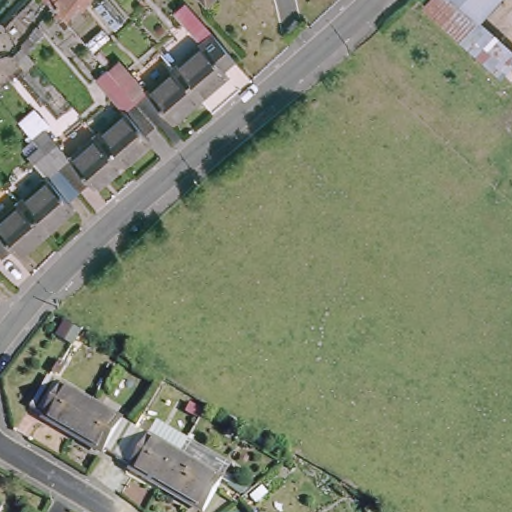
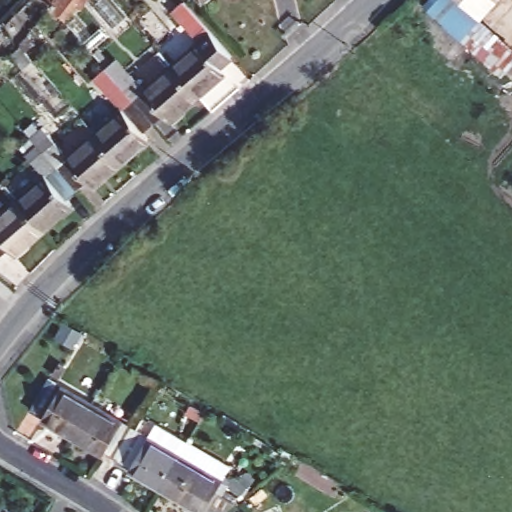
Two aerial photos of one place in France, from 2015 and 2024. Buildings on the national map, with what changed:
unchanged [(51,4),(48,0),(82,0),(65,22),(51,4)]
unchanged [(481,11),(464,31),(429,0),(491,0),(481,11)]
unchanged [(220,61),(225,66),(196,90),(172,62),(200,38),(179,13),(190,3),(232,52),(220,61)]
unchanged [(512,55),(500,67),(462,32),(464,31),(481,11),(512,41),(512,55)]
unchanged [(145,84),(172,62),(196,90),(170,113),(165,107),(154,117),(112,70),(124,60),(145,84)]
unchanged [(142,127),(147,132),(119,156),(116,152),(95,128),(122,104),(102,79),(112,70),(154,117),(142,127)]
unchanged [(92,180),(87,174),(75,184),(42,146),(39,142),(34,137),(46,127),(67,151),(95,128),(116,152),(119,156),(92,180)]
unchanged [(43,171),(27,152),(39,142),(42,146),(75,184),(62,194),(67,200),(40,222),(16,194),(43,171)]
unchanged [(14,245),(9,239),(0,247),(0,208),(16,194),(40,222),(14,245)]
unchanged [(47,414),(49,412),(37,404),(55,375),(99,402),(85,423),(79,434),(47,414)]
unchanged [(124,457),(110,449),(107,452),(79,434),(85,423),(99,402),(142,428),(124,457)]
unchanged [(165,487),(135,468),(137,465),(124,457),(142,428),(185,455),(165,487)]
unchanged [(206,512),(205,512),(165,487),(185,455),(192,444),(233,468),(206,512)]
unchanged [(0,512),(0,493),(15,502),(8,512),(0,512)]

